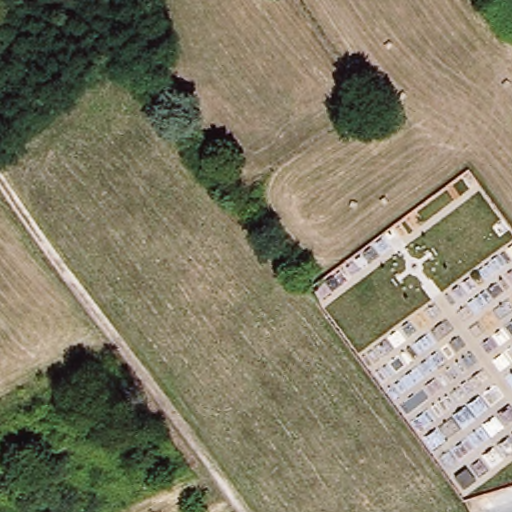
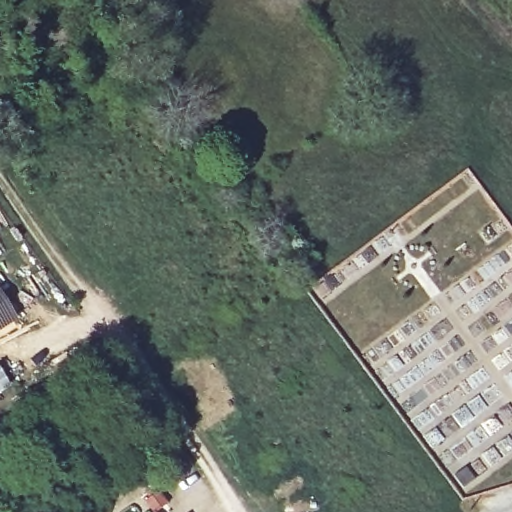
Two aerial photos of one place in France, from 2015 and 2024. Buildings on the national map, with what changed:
new [(21,319),(0,332),(0,286),(21,319)]
new [(12,385),(0,391),(0,364),(12,385)]

